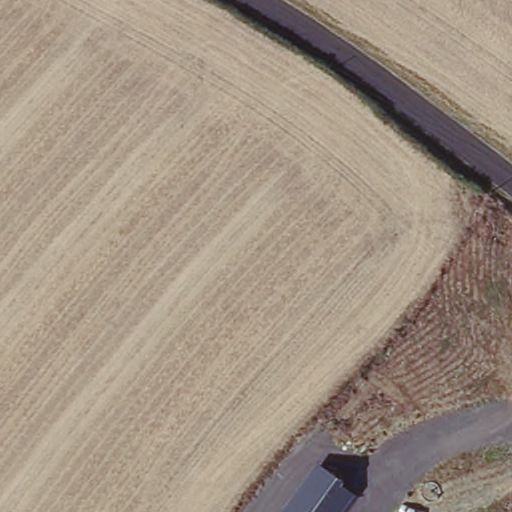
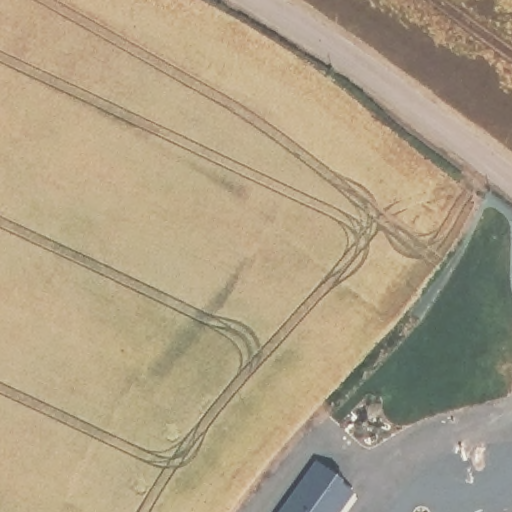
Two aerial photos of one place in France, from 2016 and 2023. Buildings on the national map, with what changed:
unchanged [(343,512),(283,512),(318,465),(356,494),(343,512)]

